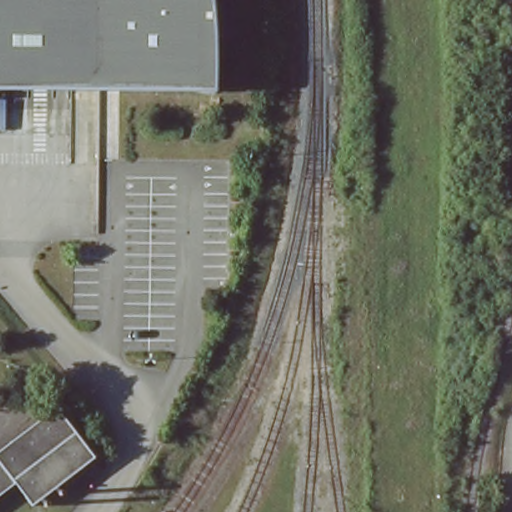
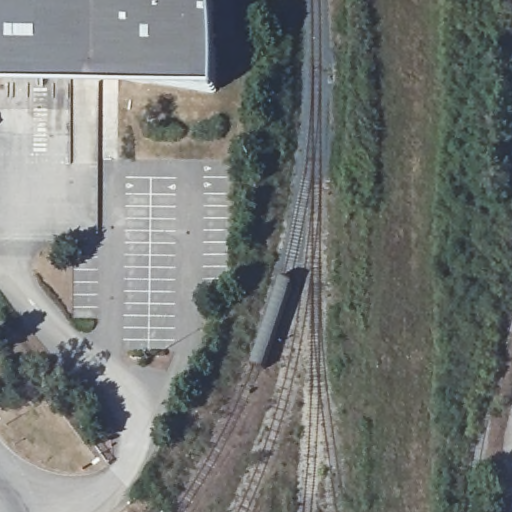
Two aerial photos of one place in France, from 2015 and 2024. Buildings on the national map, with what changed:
unchanged [(215,95),(0,92),(0,0),(214,0),(216,17),(215,95)]
demolished [(51,408),(90,457),(27,505),(10,483),(0,491),(0,448),(51,408)]

